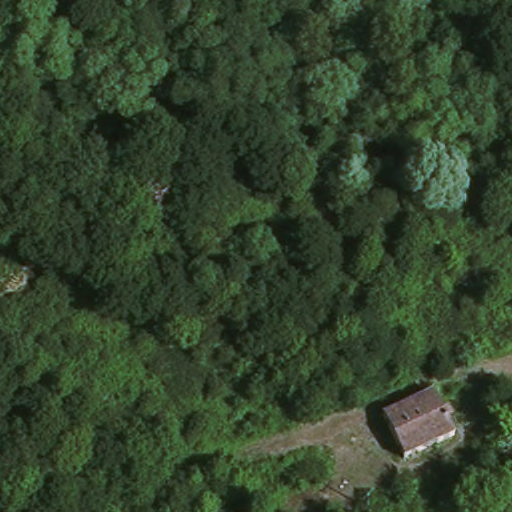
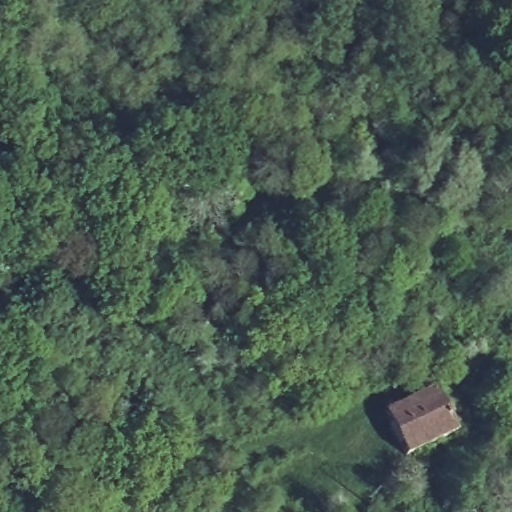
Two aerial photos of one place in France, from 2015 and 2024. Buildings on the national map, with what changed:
unchanged [(432,392),(452,433),(399,459),(379,418),(432,392)]

